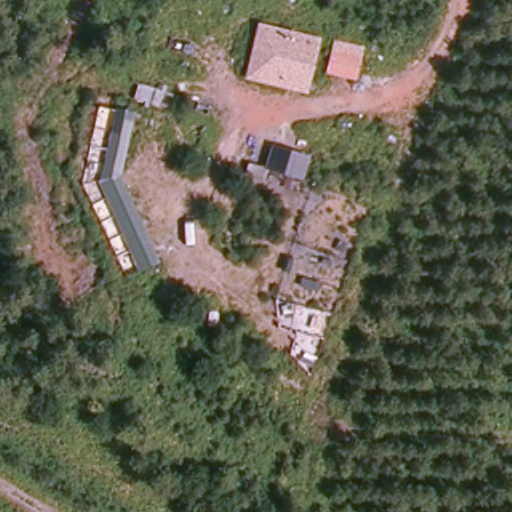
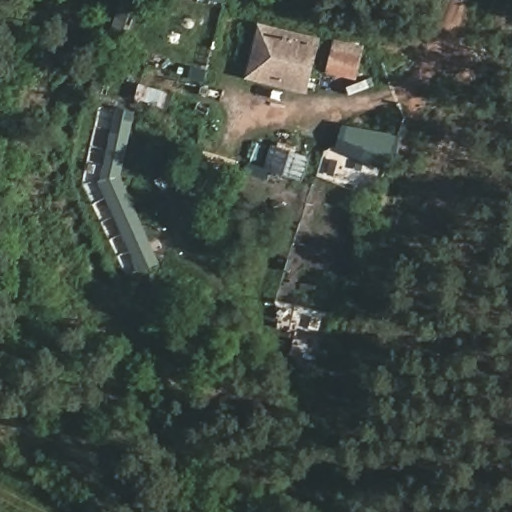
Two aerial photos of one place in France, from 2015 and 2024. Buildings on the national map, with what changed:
unchanged [(307,94),(244,79),(259,21),(321,37),(307,94)]
unchanged [(357,81),(325,74),(334,39),(364,45),(357,81)]
unchanged [(122,174),(159,264),(136,273),(95,179),(113,105),(138,111),(122,174)]
new [(384,167),(335,150),(343,122),(394,137),(384,167)]
unchanged [(304,181),(266,172),(273,145),(311,154),(304,181)]

